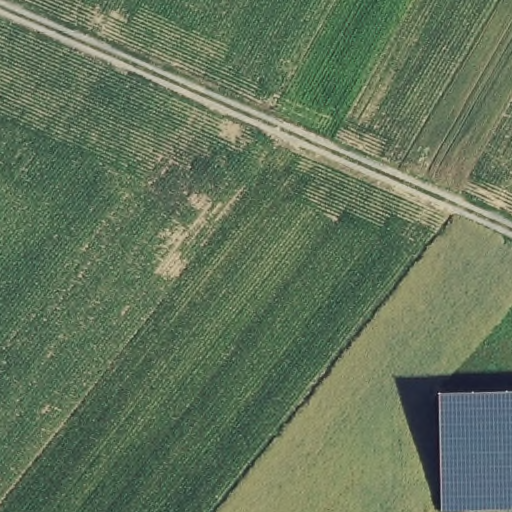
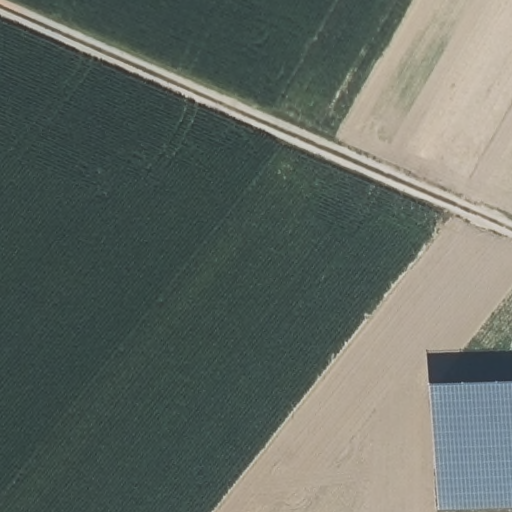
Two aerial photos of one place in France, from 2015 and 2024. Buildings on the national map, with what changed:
unchanged [(438,511),(436,442),(435,398),(472,397),(512,395),(512,508),(438,511)]

